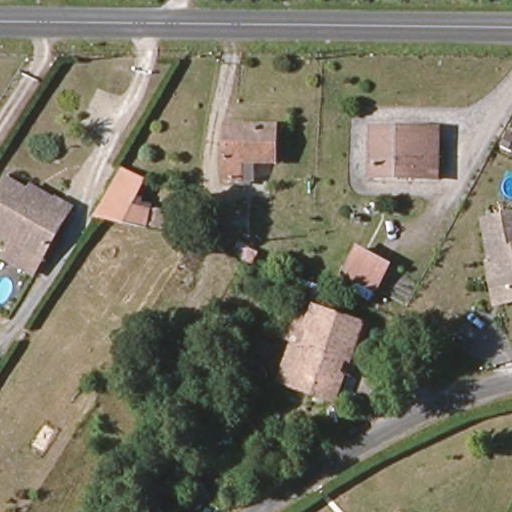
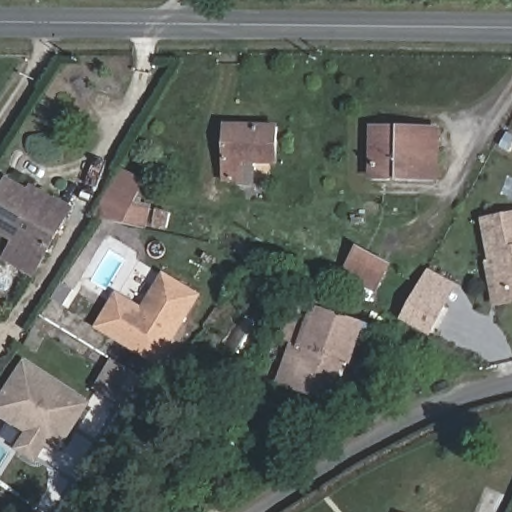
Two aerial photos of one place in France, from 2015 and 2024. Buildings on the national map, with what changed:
unchanged [(274,164),(260,165),(258,182),(226,179),(227,128),(277,127),(274,164)]
unchanged [(437,136),(435,179),(369,175),(371,134),(437,136)]
unchanged [(133,203),(170,213),(166,233),(90,219),(120,170),(144,182),(133,203)]
unchanged [(28,190),(30,185),(72,210),(34,279),(2,262),(11,244),(0,237),(0,188),(5,178),(28,190)]
unchanged [(497,268),(490,227),(512,222),(512,308),(498,310),(490,269),(497,268)]
unchanged [(394,268),(377,296),(345,278),(362,250),(394,268)]
new [(431,337),(399,319),(428,267),(459,284),(431,337)]
new [(98,326),(117,295),(142,311),(164,276),(197,296),(157,362),(142,353),(130,346),(98,326)]
unchanged [(335,359),(331,358),(315,396),(282,382),(294,354),(282,349),(297,313),(314,307),(351,320),(335,359)]
new [(113,359),(132,371),(115,398),(97,387),(113,359)]
new [(57,450),(45,443),(34,460),(17,449),(28,432),(0,413),(0,401),(25,363),(87,404),(76,421),(69,433),(57,450)]

